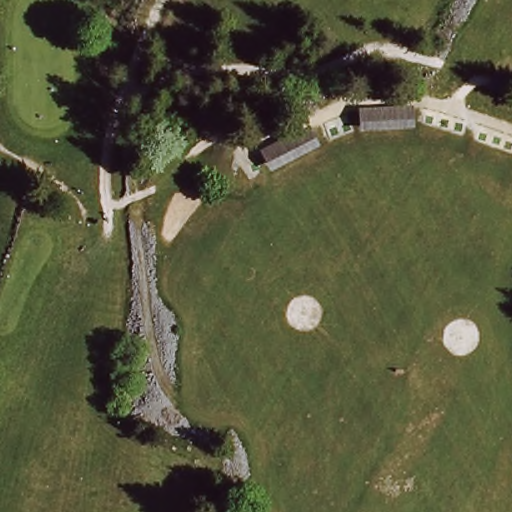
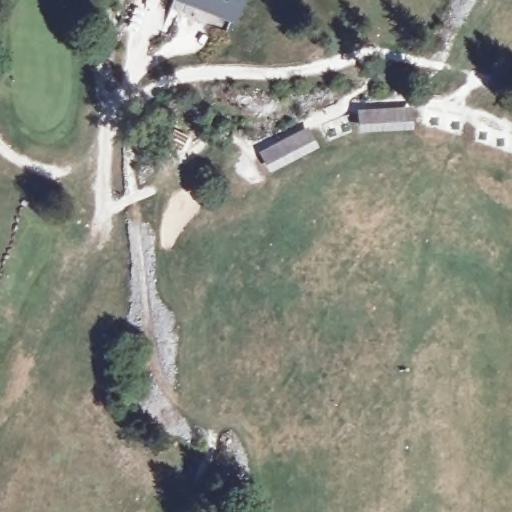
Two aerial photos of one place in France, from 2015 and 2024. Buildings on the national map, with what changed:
new [(175,0),(243,0),(234,23),(175,0)]
unchanged [(356,110),(414,107),(415,129),(359,133),(356,110)]
unchanged [(308,126),(321,150),(271,175),(259,150),(308,126)]

